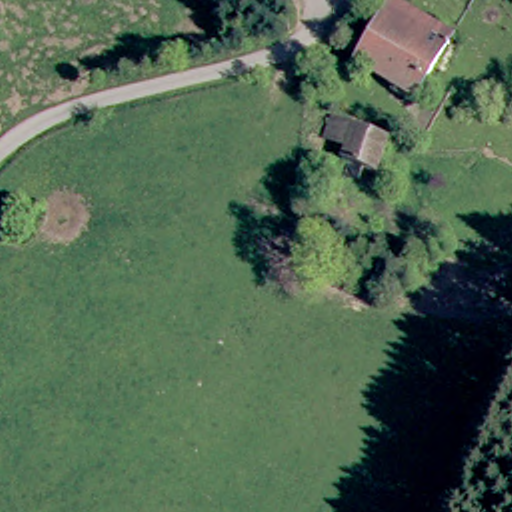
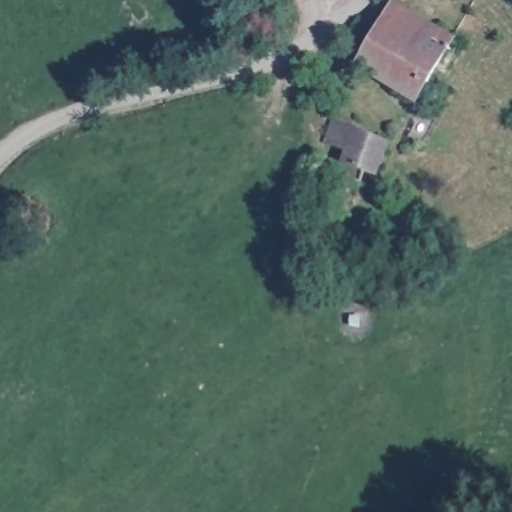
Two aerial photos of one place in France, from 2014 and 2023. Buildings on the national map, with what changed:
unchanged [(398,7),(455,42),(417,103),(360,67),(390,21),(398,7)]
unchanged [(435,116),(415,144),(402,136),(420,107),(435,116)]
unchanged [(392,144),(375,188),(348,178),(352,170),(345,167),(351,152),(327,143),(335,121),(392,144)]

